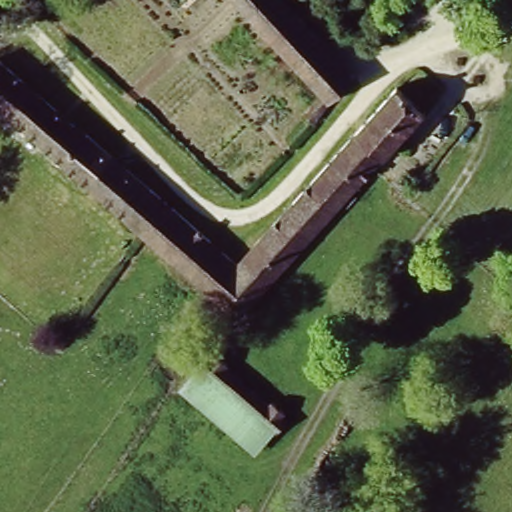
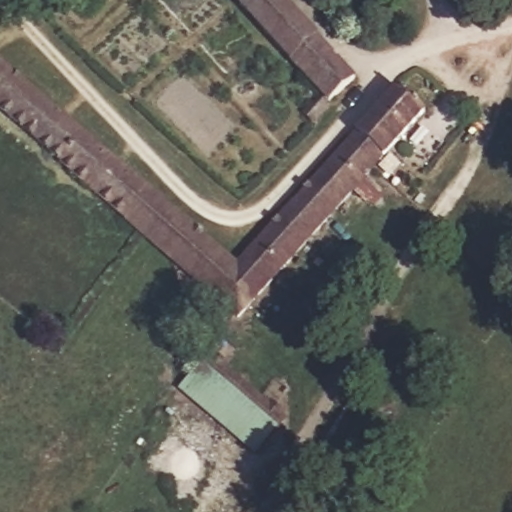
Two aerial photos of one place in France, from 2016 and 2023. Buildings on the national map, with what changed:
unchanged [(362,79),(315,124),(297,106),(321,83),(242,0),(285,0),(362,79)]
unchanged [(0,62),(239,270),(387,96),(402,80),(425,100),(238,317),(210,294),(0,118),(0,62)]
unchanged [(257,455),(177,394),(209,352),(284,415),(257,455)]

